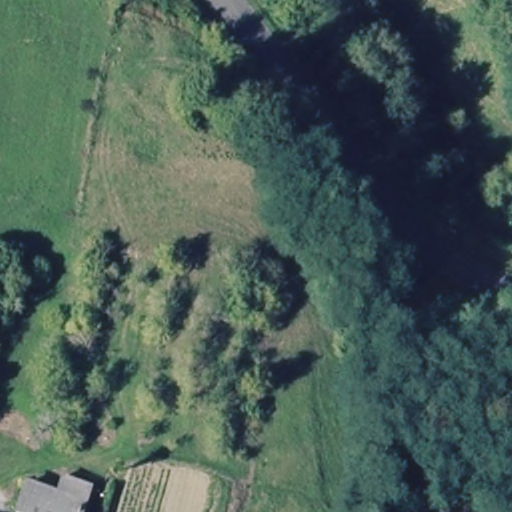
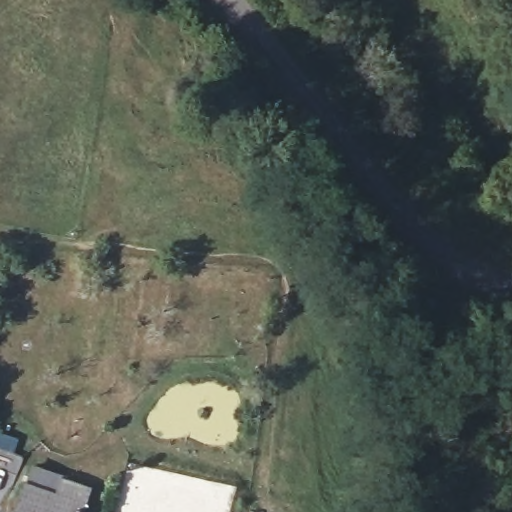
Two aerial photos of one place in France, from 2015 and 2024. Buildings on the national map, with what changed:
unchanged [(66,497),(70,481),(96,485),(89,502),(86,512),(20,512),(26,487),(66,497)]

